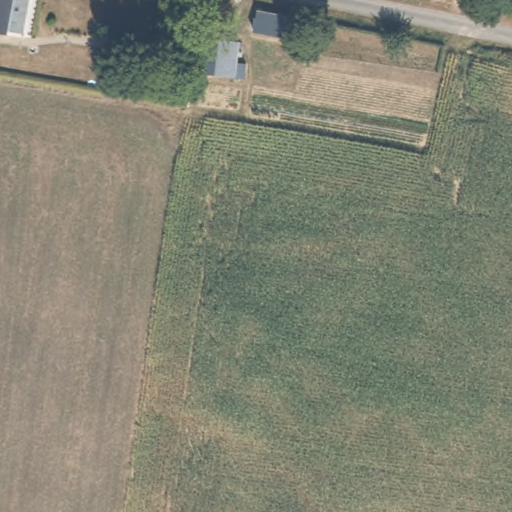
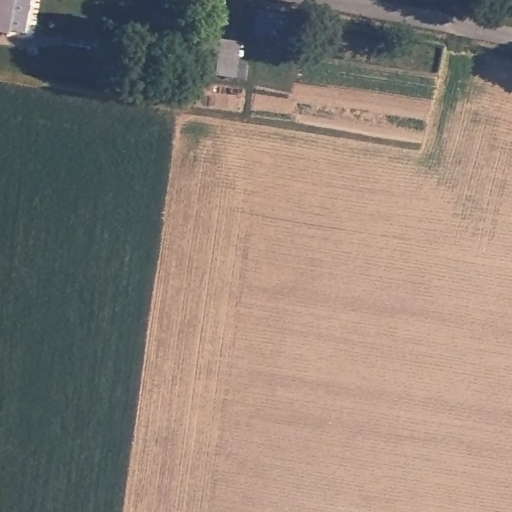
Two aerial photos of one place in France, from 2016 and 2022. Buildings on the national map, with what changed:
unchanged [(24,31),(11,30),(10,35),(0,33),(0,0),(29,0),(24,31)]
unchanged [(293,15),(289,35),(250,27),(254,7),(293,15)]
unchanged [(246,41),(241,78),(222,76),(198,73),(203,34),(226,38),(246,41)]

